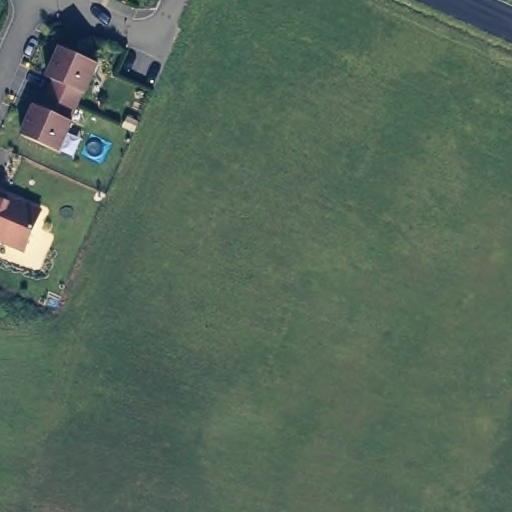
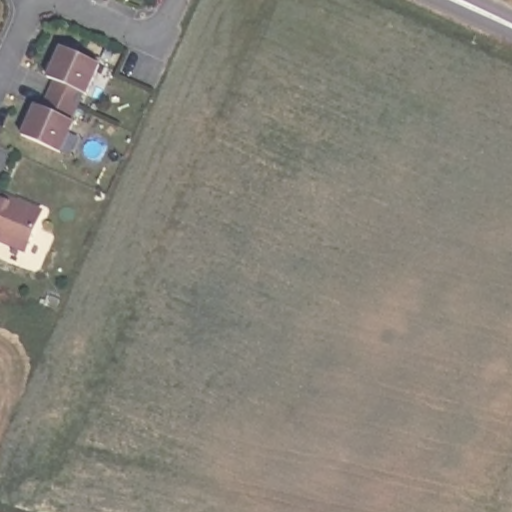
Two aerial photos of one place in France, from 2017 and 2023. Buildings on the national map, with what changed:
unchanged [(72,127),(58,156),(20,139),(33,110),(40,113),(53,84),(46,81),(60,52),(98,69),(85,99),(82,98),(70,126),(72,127)]
unchanged [(24,256),(0,245),(0,198),(41,216),(24,256)]

